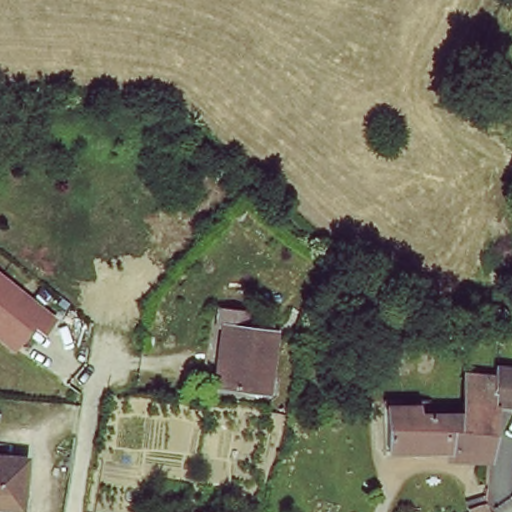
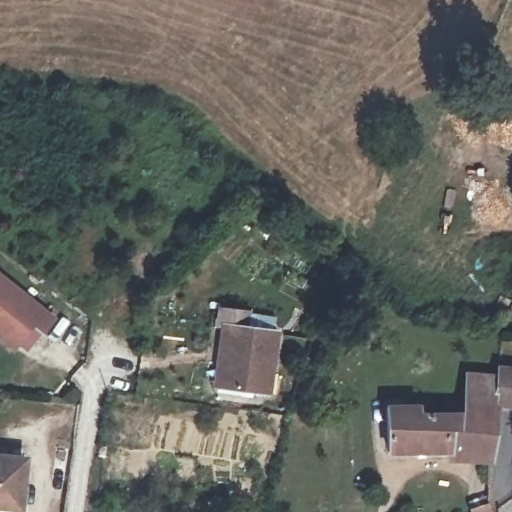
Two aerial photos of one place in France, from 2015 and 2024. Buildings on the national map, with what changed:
unchanged [(49,317),(33,337),(25,331),(10,347),(0,340),(0,277),(49,317)]
unchanged [(270,388),(219,382),(226,320),(279,327),(270,388)]
unchanged [(506,370),(512,370),(512,399),(502,398),(490,477),(475,477),(476,450),(437,450),(435,413),(469,413),(471,395),(473,368),(506,370)]
unchanged [(383,396),(404,397),(404,404),(415,404),(415,413),(435,413),(437,450),(384,449),(383,402),(383,396)]
unchanged [(25,463),(19,512),(0,512),(0,461),(25,463)]
unchanged [(474,508),(487,505),(489,512),(475,512),(474,508)]

